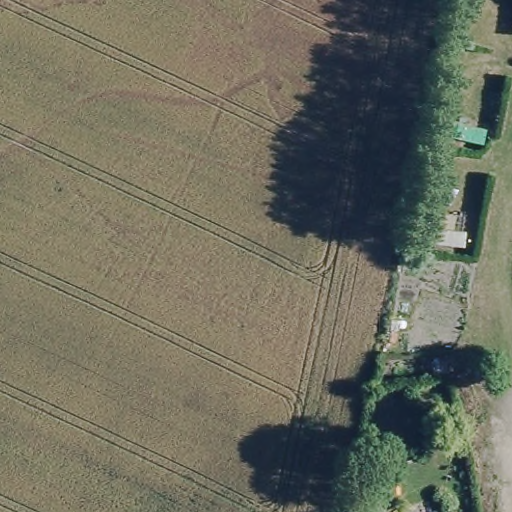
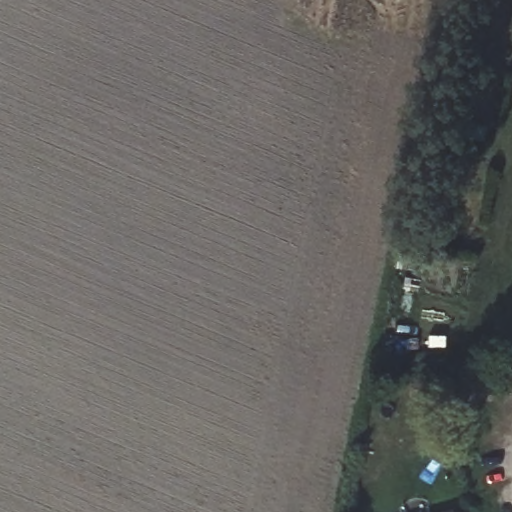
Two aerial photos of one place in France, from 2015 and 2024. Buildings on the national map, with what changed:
unchanged [(452,512),(435,512),(450,507),(452,512)]

